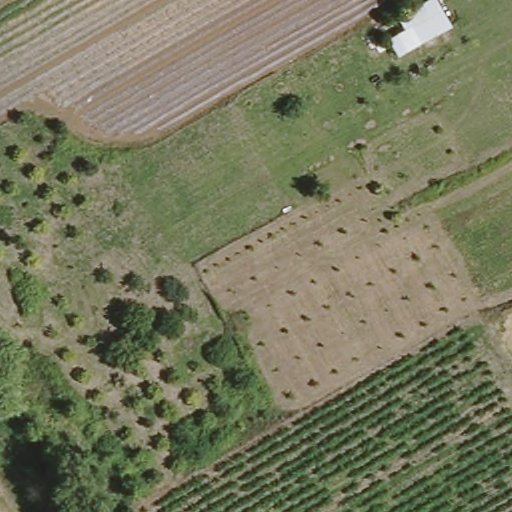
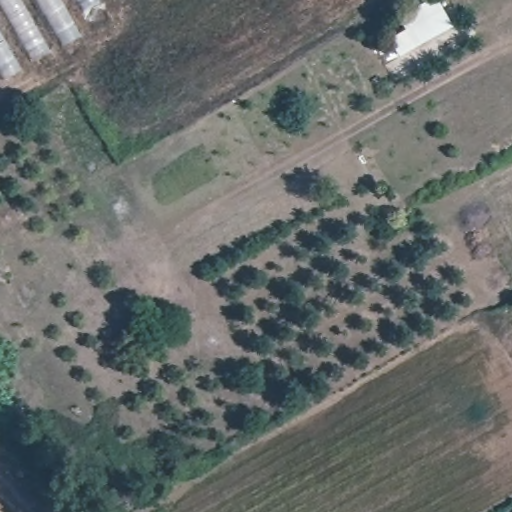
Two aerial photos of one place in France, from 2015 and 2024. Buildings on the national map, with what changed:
new [(0,80),(0,0),(103,0),(113,17),(0,80)]
unchanged [(440,0),(457,34),(400,60),(387,34),(440,0)]

